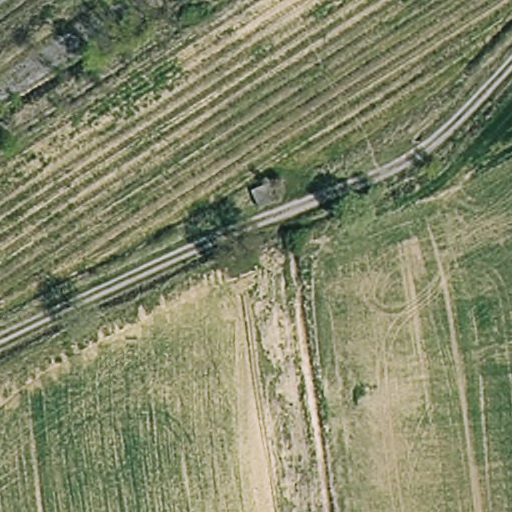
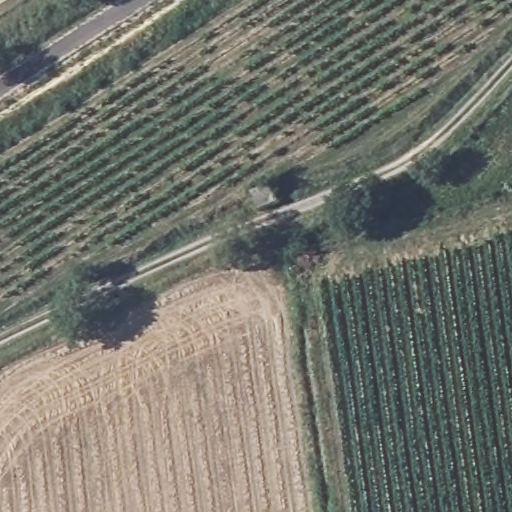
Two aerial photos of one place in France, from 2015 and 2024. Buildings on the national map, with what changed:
unchanged [(251,194),(269,185),(277,204),(260,212),(251,194)]

